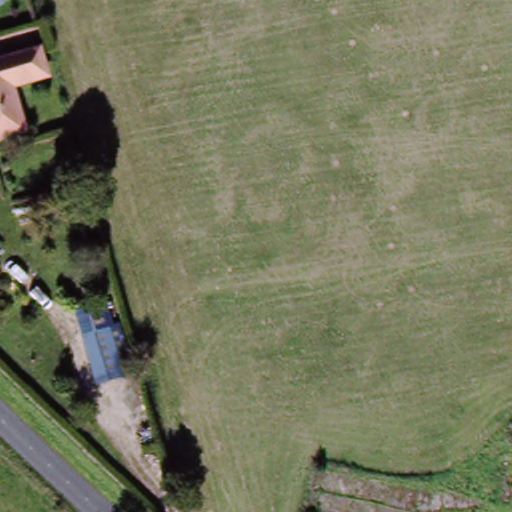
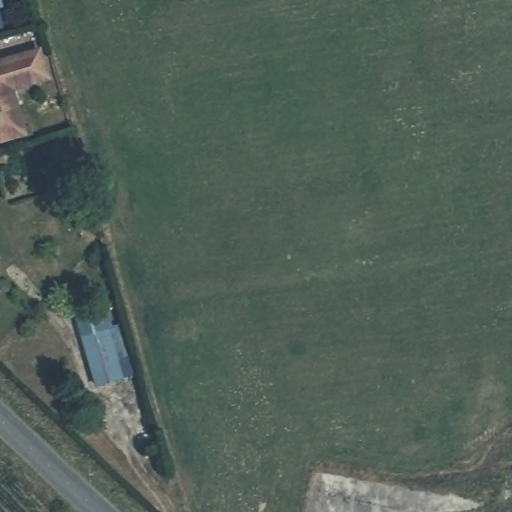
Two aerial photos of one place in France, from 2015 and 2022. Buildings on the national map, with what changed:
unchanged [(0,6),(0,0),(5,0),(6,5),(0,6)]
unchanged [(45,81),(12,90),(26,140),(0,147),(0,70),(38,59),(45,81)]
unchanged [(103,329),(110,357),(94,362),(86,333),(103,329)]

